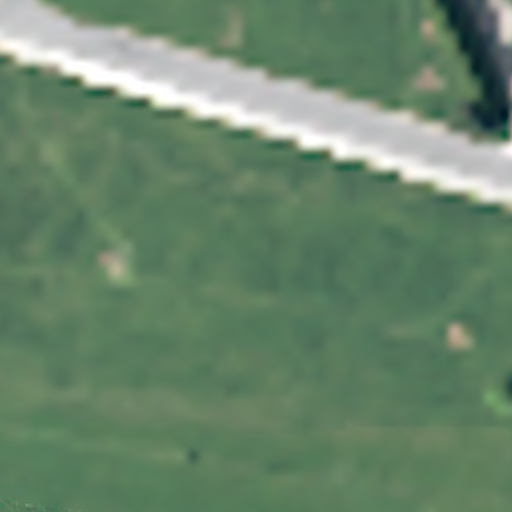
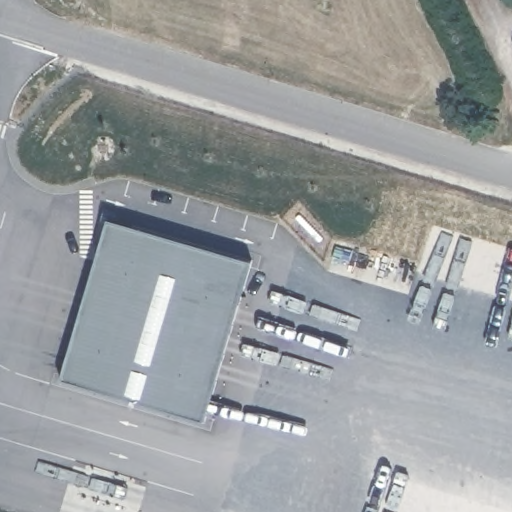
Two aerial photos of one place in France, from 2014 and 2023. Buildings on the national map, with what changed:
new [(62,375),(107,217),(250,259),(203,418),(62,375)]

